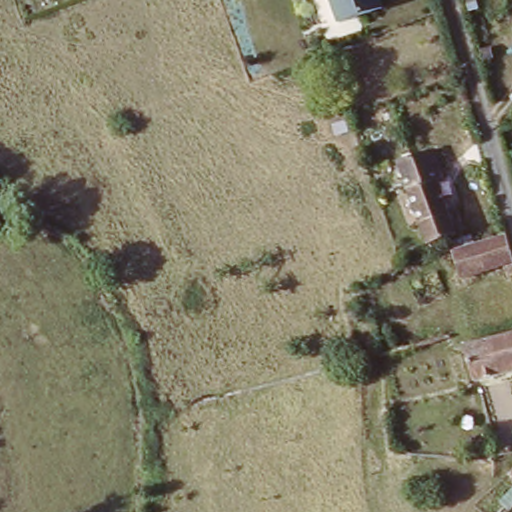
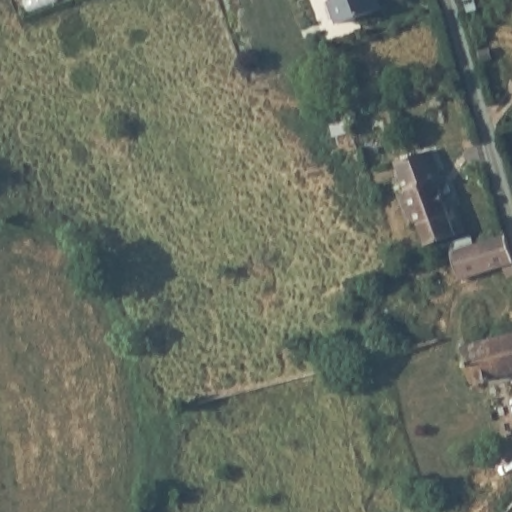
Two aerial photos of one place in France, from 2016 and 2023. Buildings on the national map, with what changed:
unchanged [(385,5),(343,18),(335,0),(384,0),(385,5)]
unchanged [(399,169),(421,161),(429,157),(437,176),(433,178),(451,233),(420,245),(400,192),(394,172),(399,169)]
unchanged [(504,276),(500,268),(463,282),(452,254),(501,235),(512,264),(512,272),(504,276)]
unchanged [(512,331),(512,371),(479,378),(468,341),(512,331)]

